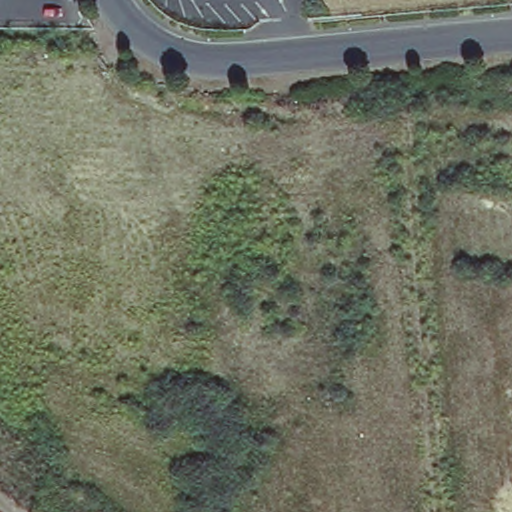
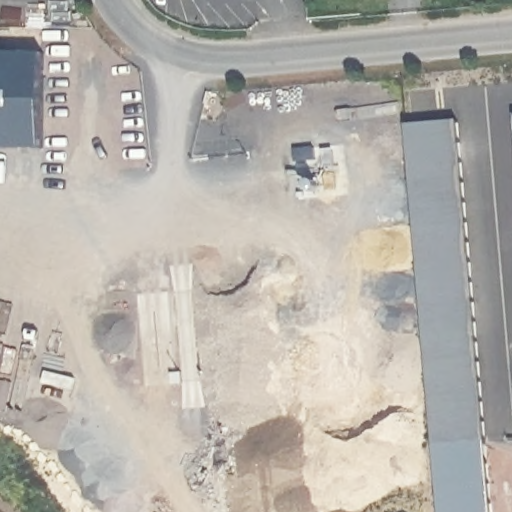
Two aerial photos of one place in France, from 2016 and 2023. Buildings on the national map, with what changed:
new [(41,56),(40,139),(0,139),(0,56),(41,56)]
new [(466,116),(496,440),(461,441),(463,457),(440,459),(407,125),(466,116)]

